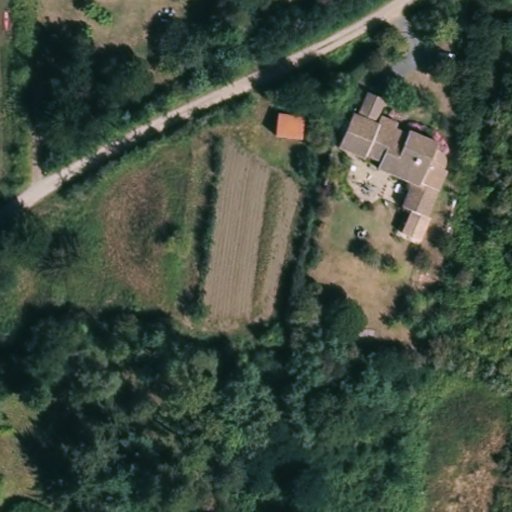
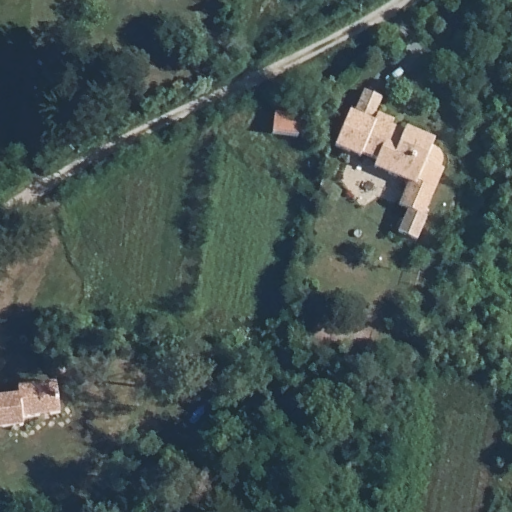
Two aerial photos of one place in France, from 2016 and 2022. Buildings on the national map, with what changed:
unchanged [(384,169),(369,162),(372,155),(357,149),(355,152),(337,144),(330,141),(345,106),(349,108),(359,85),(376,93),(370,109),(388,117),(386,121),(399,127),(400,123),(429,136),(426,142),(434,146),(435,148),(436,151),(437,154),(437,157),(435,163),(438,164),(418,211),(394,200),(403,177),(384,169)]
new [(22,419),(22,427),(0,429),(0,395),(19,393),(17,386),(55,381),(59,415),(22,419)]

